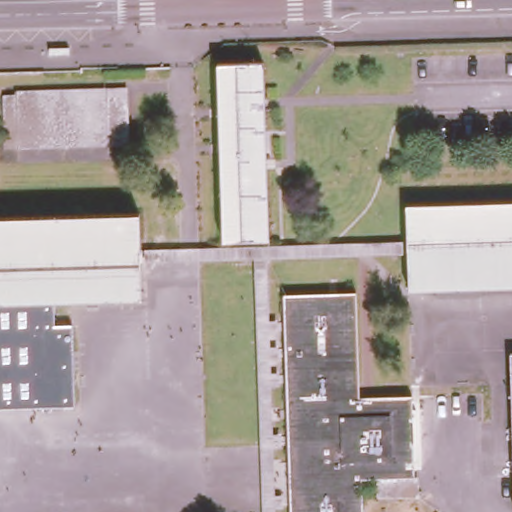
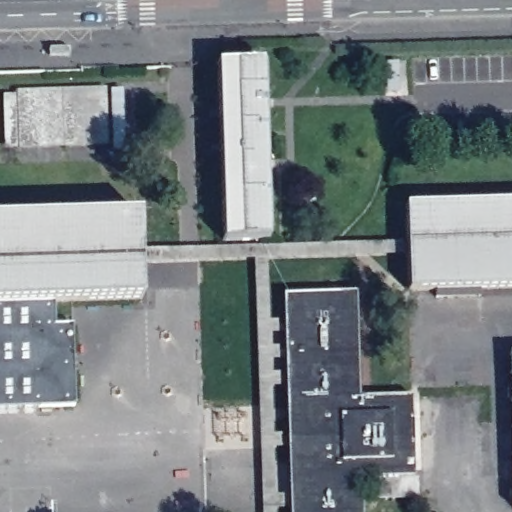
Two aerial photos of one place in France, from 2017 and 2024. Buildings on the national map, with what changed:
unchanged [(272,243),(224,245),(219,68),(265,67),(272,243)]
unchanged [(130,85),(132,143),(3,147),(2,89),(130,85)]
unchanged [(407,205),(512,201),(512,287),(410,290),(407,205)]
unchanged [(141,300),(52,301),(52,325),(70,325),(74,406),(0,409),(0,217),(138,213),(141,300)]
unchanged [(412,395),(414,477),(362,478),(362,512),(289,512),(285,295),(357,292),(360,396),(412,395)]
unchanged [(512,480),(487,480),(485,423),(512,424),(512,480)]

